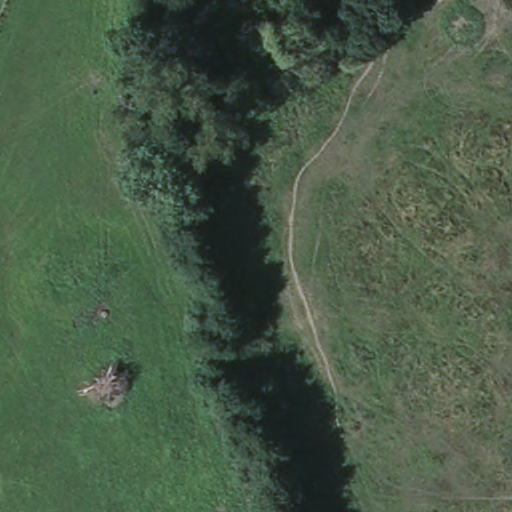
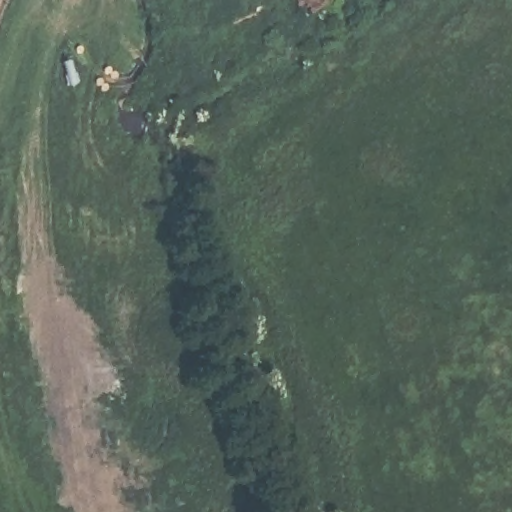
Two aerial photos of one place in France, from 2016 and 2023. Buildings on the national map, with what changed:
unchanged [(335,46),(312,22),(336,0),(391,0),(356,29),(335,46)]

